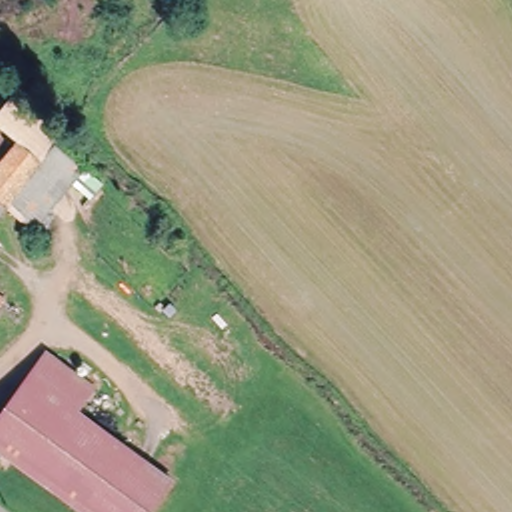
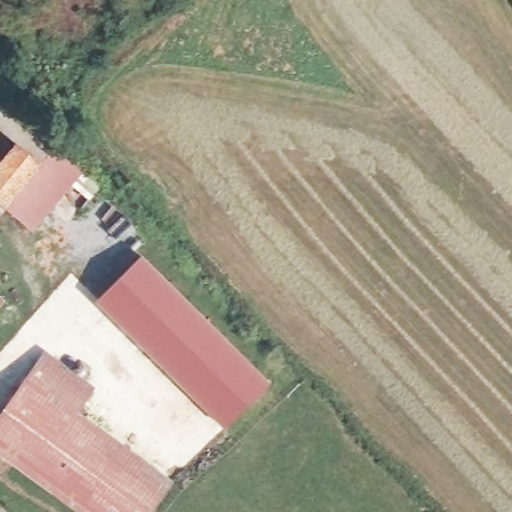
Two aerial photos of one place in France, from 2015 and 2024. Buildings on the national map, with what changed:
unchanged [(27,123),(32,128),(49,142),(43,149),(72,173),(24,231),(0,210),(0,156),(5,151),(27,123)]
new [(225,426),(95,299),(141,252),(269,381),(225,426)]
unchanged [(0,304),(0,302),(1,303),(0,304)]
unchanged [(0,406),(45,347),(95,386),(78,410),(172,484),(149,512),(79,512),(0,451),(0,406)]

